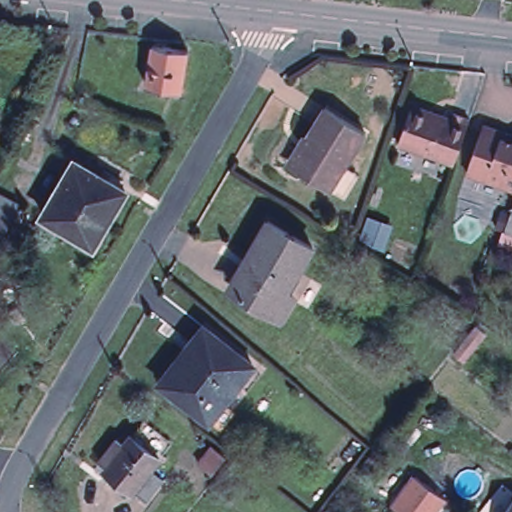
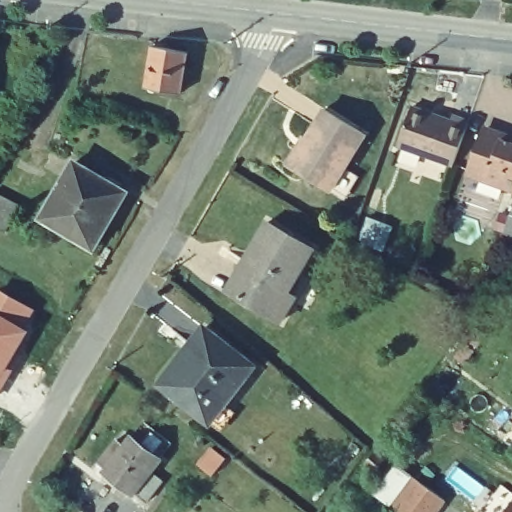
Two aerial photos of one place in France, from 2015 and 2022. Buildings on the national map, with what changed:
unchanged [(186,51),(179,92),(144,85),(152,45),(186,51)]
unchanged [(452,164),(396,144),(410,105),(448,120),(450,114),(467,120),(452,164)]
unchanged [(343,198),(329,190),(291,167),(286,164),(304,135),(306,136),(324,109),(364,134),(343,167),(356,176),(343,198)]
unchanged [(486,129),(496,130),(512,130),(512,190),(462,172),(476,131),(486,129)]
unchanged [(123,190),(93,245),(41,217),(72,161),(123,190)]
unchanged [(2,230),(0,229),(0,195),(16,204),(2,230)]
unchanged [(503,234),(512,207),(512,237),(503,234)]
unchanged [(311,252),(271,321),(231,295),(253,261),(246,256),(266,225),(311,252)]
new [(24,331),(26,333),(6,368),(12,372),(0,395),(0,292),(34,311),(24,331)]
unchanged [(252,364),(209,422),(164,389),(193,348),(188,344),(201,326),(252,364)]
unchanged [(480,340),(459,367),(449,360),(471,332),(480,340)]
unchanged [(144,506),(133,496),(105,475),(108,471),(99,465),(116,443),(124,449),(131,441),(158,462),(148,475),(161,483),(144,506)]
unchanged [(225,457),(211,475),(197,463),(211,446),(225,457)]
unchanged [(444,500),(435,512),(398,512),(391,507),(414,478),(444,500)]
unchanged [(512,489),(512,512),(492,512),(511,488),(512,489)]

